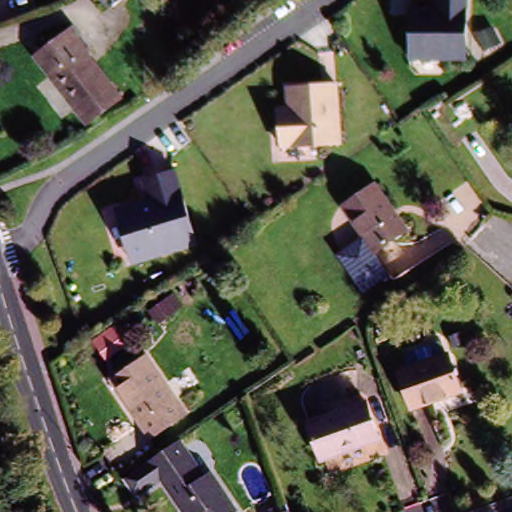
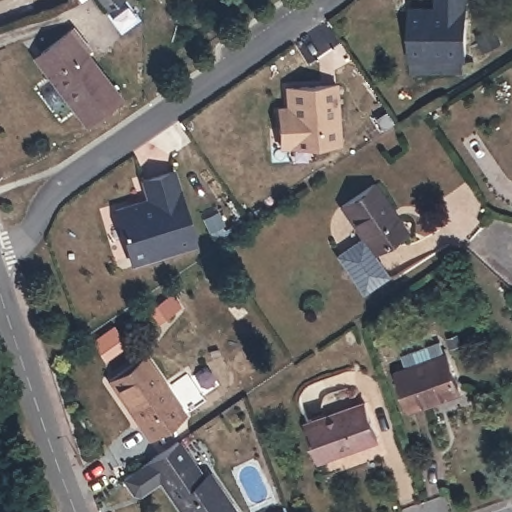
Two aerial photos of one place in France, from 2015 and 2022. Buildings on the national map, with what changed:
unchanged [(101,12),(91,0),(118,0),(101,12)]
unchanged [(431,11),(431,0),(464,0),(465,59),(404,58),(403,10),(431,11)]
unchanged [(64,31),(80,51),(75,55),(112,104),(87,125),(32,57),(64,31)]
unchanged [(335,85),(339,146),(273,147),(272,115),(271,103),(285,103),(285,87),(335,85)]
unchanged [(126,252),(120,205),(152,201),(148,177),(182,171),(194,255),(155,260),(128,263),(126,252)]
unchanged [(372,186),(403,234),(370,256),(340,209),(372,186)]
unchanged [(403,362),(421,354),(423,358),(443,349),(447,360),(462,394),(411,415),(397,381),(409,376),(403,362)]
unchanged [(147,444),(135,425),(103,382),(138,357),(170,400),(183,418),(147,444)]
unchanged [(362,409),(376,447),(315,468),(300,430),(362,409)]
unchanged [(135,494),(128,493),(118,478),(135,467),(175,440),(203,483),(213,477),(237,512),(176,512),(155,480),(135,494)]

